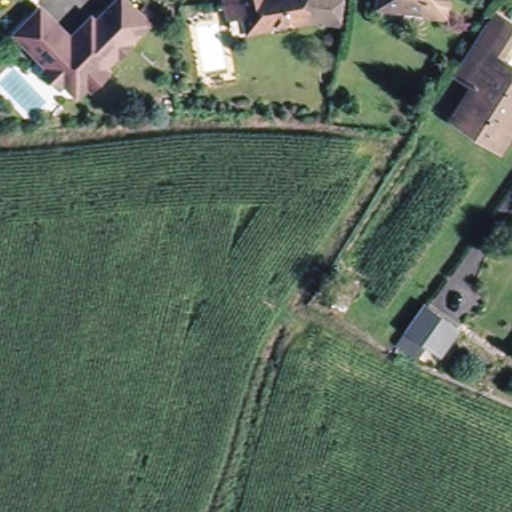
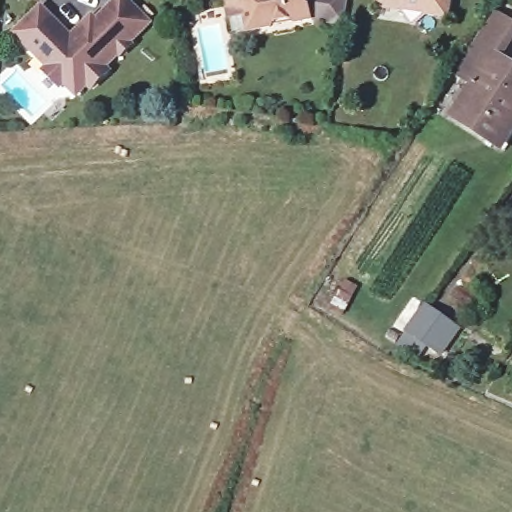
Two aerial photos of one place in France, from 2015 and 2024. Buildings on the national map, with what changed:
unchanged [(150,24),(129,44),(131,46),(120,56),(119,54),(105,68),(109,72),(92,89),(88,85),(77,96),(65,83),(61,87),(45,72),(49,68),(16,34),(42,9),(72,39),(92,18),(97,23),(119,0),(126,0),(150,24)]
unchanged [(308,20),(243,32),(240,15),(224,18),(220,0),(304,0),(308,20)]
unchanged [(341,18),(340,24),(308,20),(304,0),(344,0),(341,18)]
unchanged [(379,0),(449,0),(447,13),(426,10),(412,18),(404,7),(379,3),(379,0)]
unchanged [(457,113),(478,80),(460,68),(493,17),(502,6),(512,12),(512,37),(503,52),(512,57),(512,135),(506,144),(502,142),(457,113)]
unchanged [(441,356),(427,347),(418,359),(397,344),(425,305),(460,329),(441,356)]

